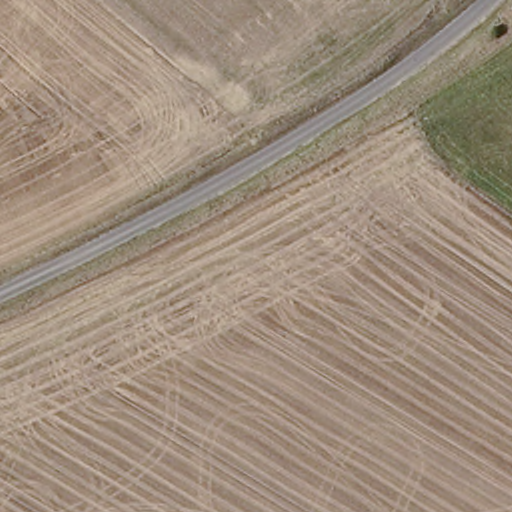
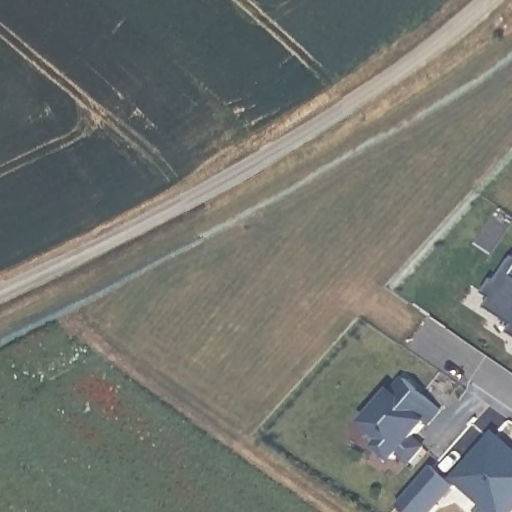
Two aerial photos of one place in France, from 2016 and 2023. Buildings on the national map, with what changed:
new [(487,307),(493,298),(485,293),(493,281),(497,283),(512,262),(512,323),(487,307)]
new [(510,331),(512,328),(512,332),(510,331)]
new [(440,410),(427,420),(431,423),(418,438),(425,445),(410,464),(400,455),(394,463),(375,447),(382,440),(363,423),(391,392),(390,391),(402,376),(440,410)]
new [(512,447),(512,512),(477,512),(481,507),(458,486),(455,479),(456,475),(494,431),(512,447)]
new [(456,487),(434,512),(406,512),(397,505),(432,467),(456,487)]

